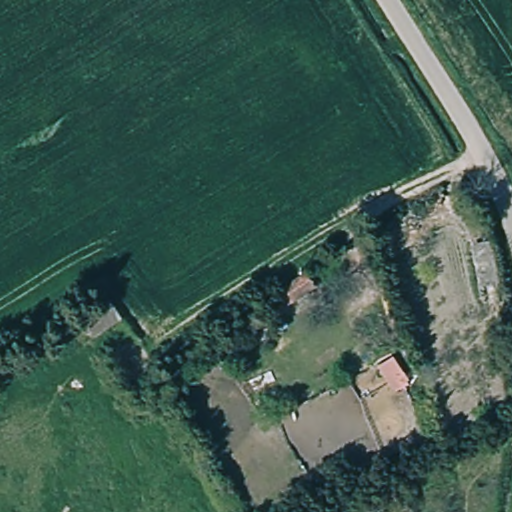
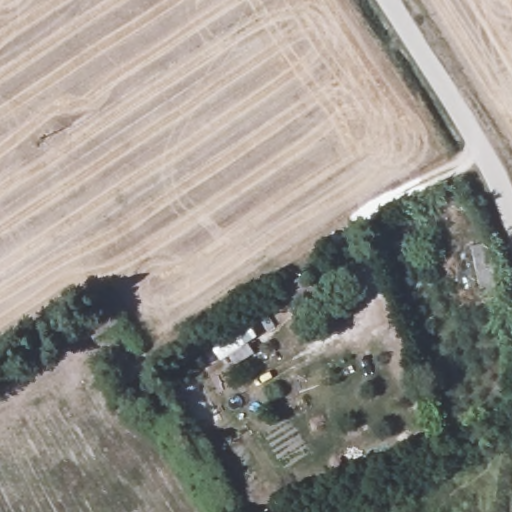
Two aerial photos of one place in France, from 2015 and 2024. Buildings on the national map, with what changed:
unchanged [(290,305),(282,291),(305,275),(314,288),(290,305)]
unchanged [(84,346),(66,321),(103,292),(123,320),(84,346)]

